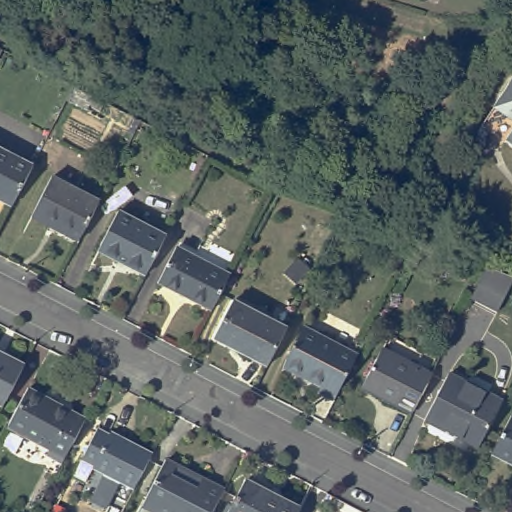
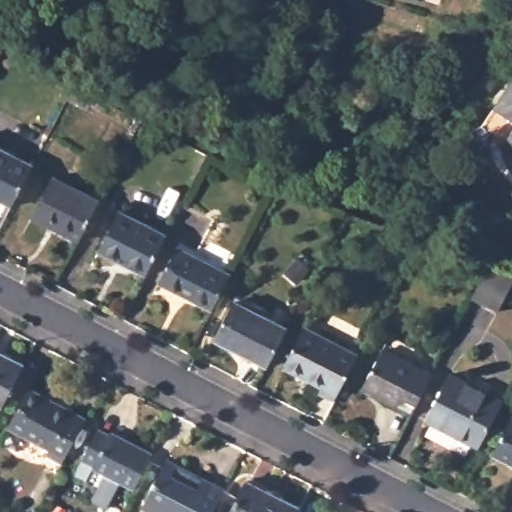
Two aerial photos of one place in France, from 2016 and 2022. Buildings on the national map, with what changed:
unchanged [(67,100),(74,86),(104,102),(100,110),(89,105),(87,110),(67,100)]
unchanged [(512,133),(512,137),(510,135),(512,133)]
unchanged [(0,200),(0,148),(33,165),(12,206),(0,200)]
unchanged [(31,216),(52,176),(99,200),(78,240),(31,216)]
unchanged [(119,210),(166,235),(145,275),(98,251),(119,210)]
unchanged [(159,283),(177,247),(230,274),(212,309),(159,283)]
unchanged [(487,265),(512,276),(512,285),(498,312),(471,298),(487,265)]
unchanged [(214,339),(233,300),(287,328),(267,366),(214,339)]
unchanged [(318,392),(321,387),(283,367),(304,327),(357,354),(334,400),(318,392)]
unchanged [(431,374),(412,411),(398,404),(397,406),(362,388),(382,349),(431,374)]
unchanged [(0,405),(0,352),(24,364),(2,406),(0,405)]
unchanged [(425,419),(449,373),(502,402),(478,448),(425,419)]
unchanged [(47,455),(49,450),(7,427),(28,388),(85,419),(62,463),(47,455)]
unchanged [(512,416),(512,465),(491,454),(512,416)]
unchanged [(79,474),(103,428),(115,434),(116,432),(157,453),(138,489),(97,468),(91,481),(79,474)]
unchanged [(214,478),(229,485),(225,492),(215,512),(142,512),(171,456),(214,478)]
unchanged [(296,512),(229,512),(246,479),(299,507),(296,512)]

